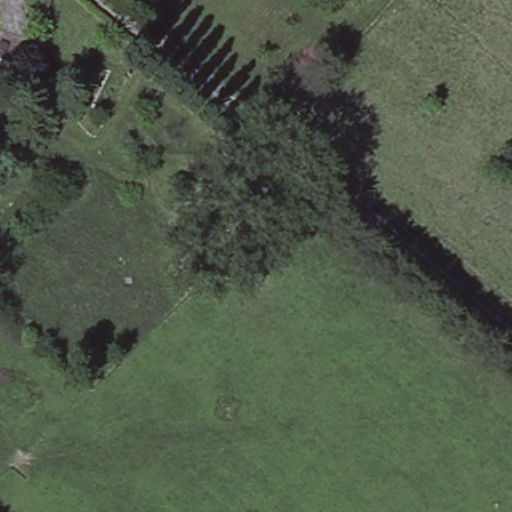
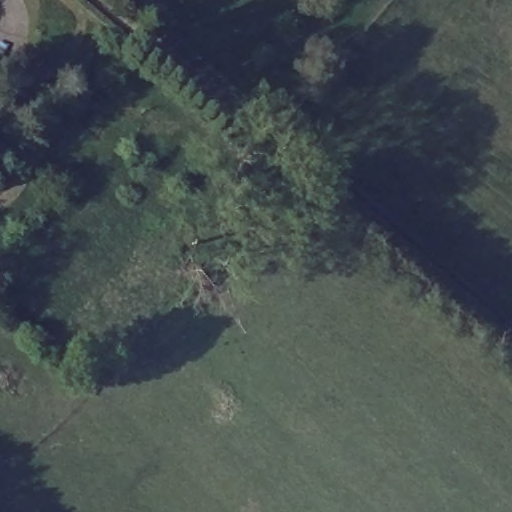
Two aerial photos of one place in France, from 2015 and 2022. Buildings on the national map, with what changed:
[]

